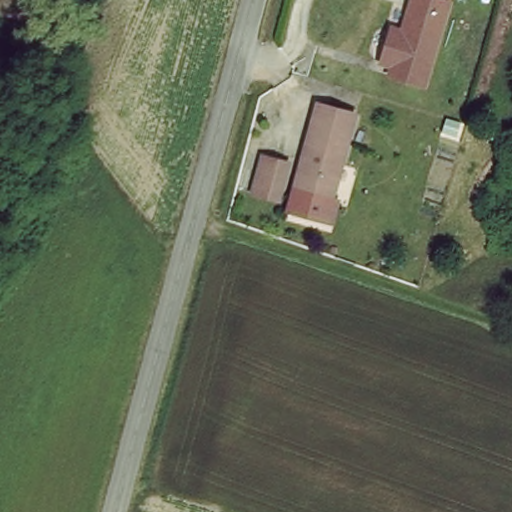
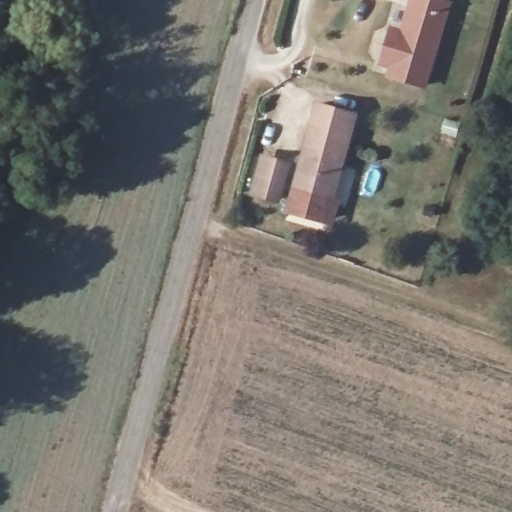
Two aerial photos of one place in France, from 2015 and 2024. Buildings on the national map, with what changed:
unchanged [(395,72),(390,69),(388,64),(386,59),(387,52),(387,46),(390,39),(394,37),(399,36),(405,35),(414,0),(434,0),(452,4),(428,90),(393,80),(395,72)]
unchanged [(333,197),(341,200),(338,220),(287,207),(314,101),(355,109),(333,197)]
unchanged [(282,161),(271,197),(252,192),(262,156),(282,161)]

